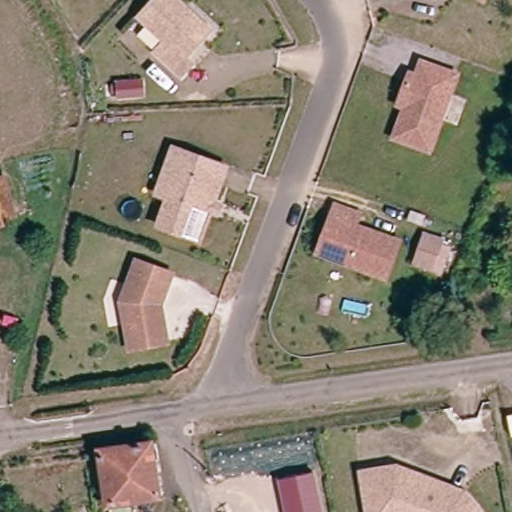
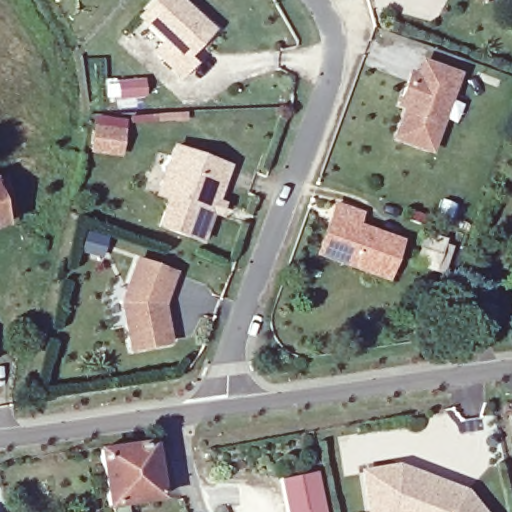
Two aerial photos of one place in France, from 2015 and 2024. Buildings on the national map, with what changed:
unchanged [(157,45),(167,34),(141,10),(150,0),(186,0),(212,23),(187,51),(193,57),(183,69),(157,45)]
unchanged [(459,72),(432,147),(397,135),(408,105),(401,102),(409,78),(412,71),(419,73),(424,59),(459,72)]
new [(88,153),(93,115),(126,120),(121,157),(88,153)]
unchanged [(214,210),(203,239),(162,224),(172,197),(160,193),(171,162),(177,146),(212,158),(230,165),(224,180),(217,200),(224,203),(221,212),(214,210)]
unchanged [(4,176),(16,216),(2,220),(3,225),(0,225),(0,176),(4,176)]
unchanged [(328,215),(333,201),(359,209),(354,222),(398,237),(385,274),(349,261),(316,250),(328,215)]
unchanged [(417,263),(419,256),(427,233),(446,240),(438,263),(436,270),(417,263)]
unchanged [(131,255),(167,267),(155,299),(163,337),(125,344),(116,296),(131,255)]
unchanged [(160,497),(108,505),(99,451),(151,443),(160,497)]
unchanged [(453,480),(469,486),(476,495),(491,512),(419,512),(397,504),(373,508),(366,467),(401,462),(453,480)]
unchanged [(285,512),(278,479),(314,473),(323,512),(285,512)]
unchanged [(419,512),(374,512),(373,508),(397,504),(419,512)]

